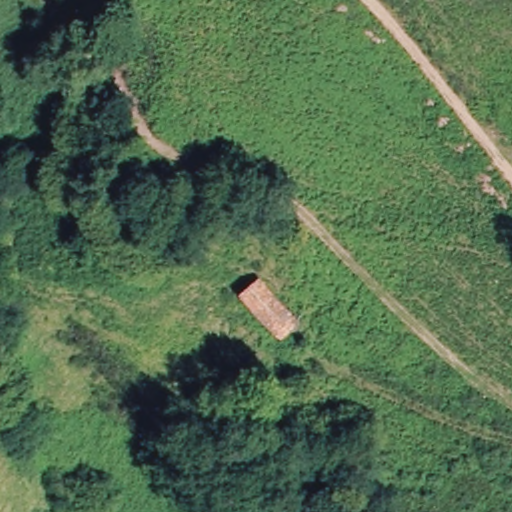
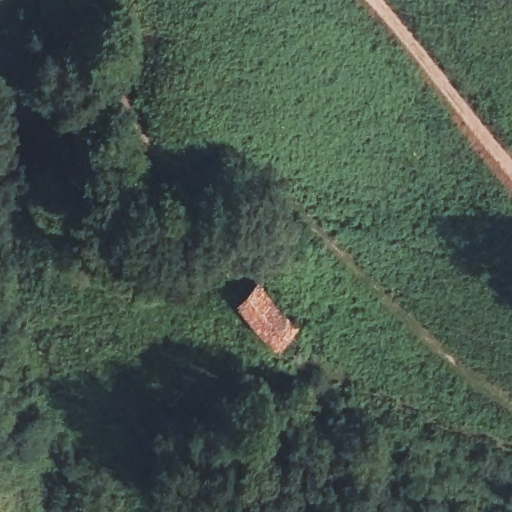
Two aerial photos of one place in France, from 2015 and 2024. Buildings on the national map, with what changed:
unchanged [(298,336),(280,358),(234,310),(254,288),(298,336)]

